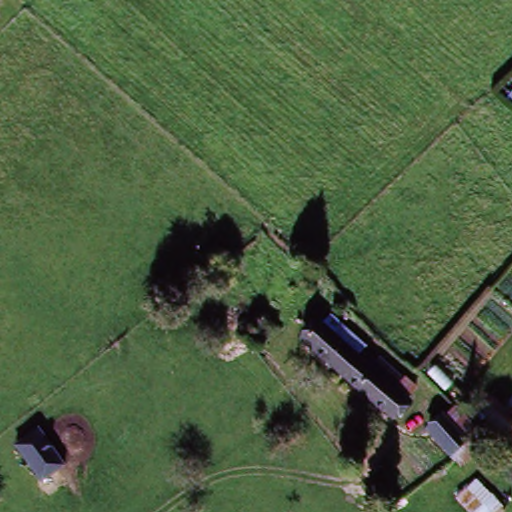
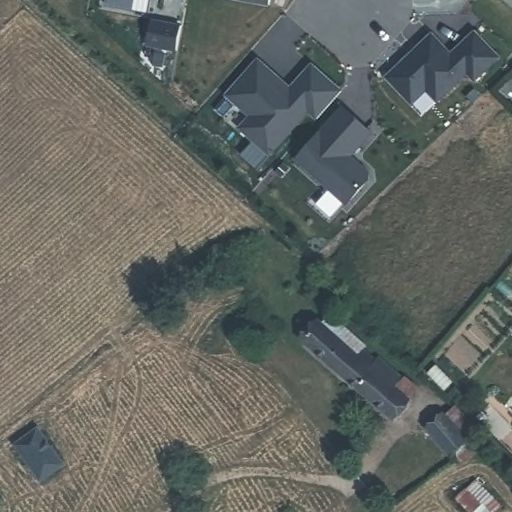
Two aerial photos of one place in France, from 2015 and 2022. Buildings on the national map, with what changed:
new [(269,4),(247,0),(269,0),(269,4)]
new [(411,52),(413,55),(419,50),(417,47),(433,32),(452,52),(475,30),(499,55),(474,78),(468,71),(438,99),(427,87),(412,101),(387,74),(411,52)]
new [(259,57),(282,78),(279,81),(289,90),(313,63),(343,89),(319,116),(310,109),(271,152),(241,125),(252,113),(228,92),(259,57)]
new [(344,106),(372,132),(348,158),(353,162),(359,162),(369,172),(369,177),(346,202),(296,157),(344,106)]
unchanged [(414,404),(397,422),(302,340),(318,321),(358,356),(363,350),(377,361),(381,357),(393,368),(423,395),(414,404)]
unchanged [(469,441),(448,459),(424,429),(444,413),(469,441)]
unchanged [(65,466),(41,483),(16,447),(39,431),(65,466)]
unchanged [(507,508),(503,512),(473,512),(459,497),(481,478),(507,508)]

